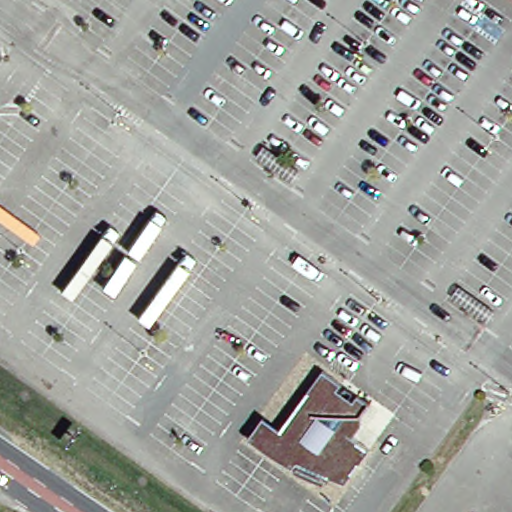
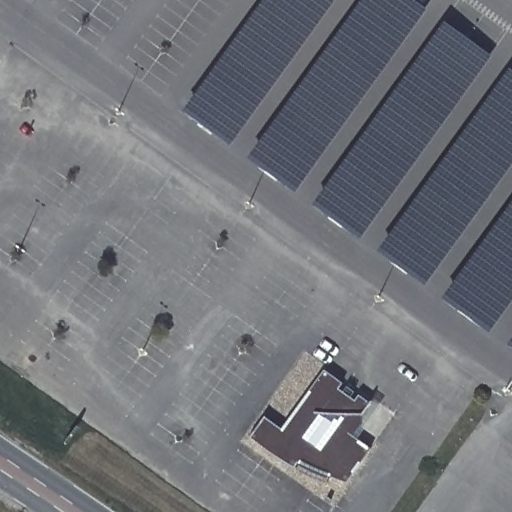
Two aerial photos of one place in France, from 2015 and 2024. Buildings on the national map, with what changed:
new [(183,112),(263,0),(336,0),(231,146),(183,112)]
new [(248,158),(362,0),(414,0),(427,10),(296,192),(248,158)]
new [(444,22),(492,57),(361,239),(313,205),(444,22)]
new [(378,251),(509,69),(512,71),(512,166),(426,286),(378,251)]
new [(443,298),(512,203),(512,302),(490,332),(443,298)]
new [(512,347),(508,345),(512,340),(512,347)]
unchanged [(340,484),(335,482),(330,481),(325,478),(320,477),(315,474),(313,473),(310,471),(306,469),(299,465),(296,462),(293,468),(290,467),(287,465),(283,462),(279,460),(271,455),(267,452),(265,451),(262,449),(258,446),(255,443),(249,439),(247,437),(262,416),(279,428),(322,370),(369,403),(359,417),(360,425),(350,438),(369,451),(344,486),(340,484)]

